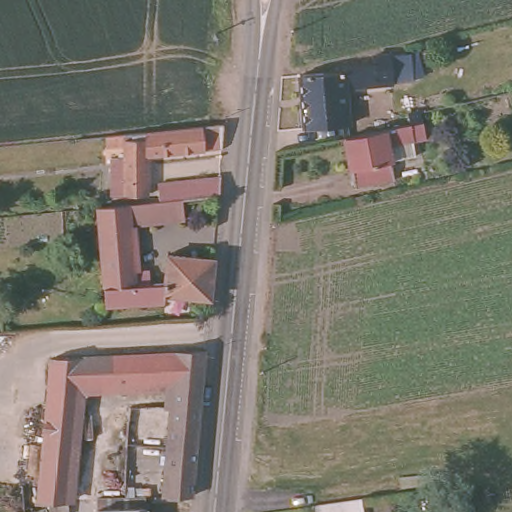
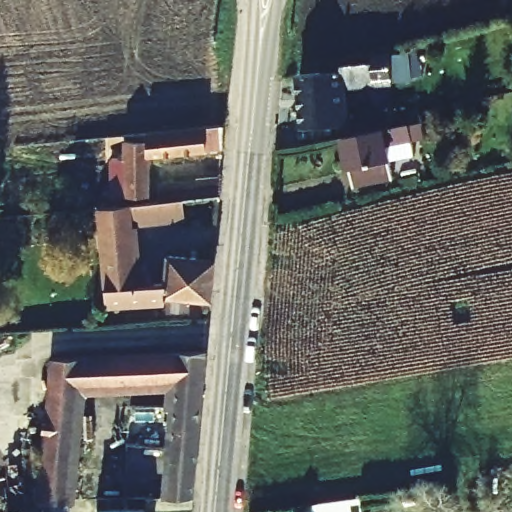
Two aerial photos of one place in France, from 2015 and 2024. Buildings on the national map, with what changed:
unchanged [(405,75),(389,76),(389,89),(342,91),(343,130),(299,132),(296,80),(336,79),(336,71),(369,69),(369,62),(401,60),(405,75)]
unchanged [(427,111),(428,115),(418,117),(417,109),(426,106),(427,111)]
unchanged [(226,150),(153,156),(152,194),(118,195),(119,160),(131,159),(131,134),(208,126),(229,125),(226,150)]
unchanged [(414,125),(419,145),(369,157),(365,136),(414,125)]
unchanged [(365,136),(369,157),(374,173),(414,162),(418,176),(356,190),(343,135),(364,130),(365,136)]
unchanged [(137,225),(142,286),(172,284),(175,255),(219,258),(216,297),(173,293),(171,301),(113,307),(103,210),(118,208),(166,201),(166,185),(201,182),(201,179),(225,177),(224,192),(192,197),(193,219),(137,225)]
unchanged [(203,340),(202,352),(200,382),(198,382),(170,384),(77,390),(65,506),(48,508),(34,508),(48,362),(186,353),(186,341),(203,340)]
unchanged [(198,382),(200,382),(196,443),(165,442),(170,384),(198,382)]
unchanged [(196,443),(191,498),(160,500),(165,442),(196,443)]
unchanged [(95,505),(95,496),(121,495),(141,493),(141,501),(142,512),(96,512),(95,505)]
unchanged [(316,511),(358,503),(359,512),(313,512),(316,511)]
unchanged [(34,508),(34,512),(0,512),(0,510),(5,510),(34,508)]

